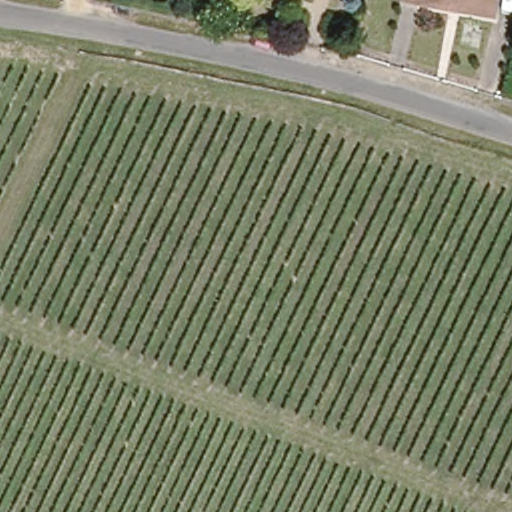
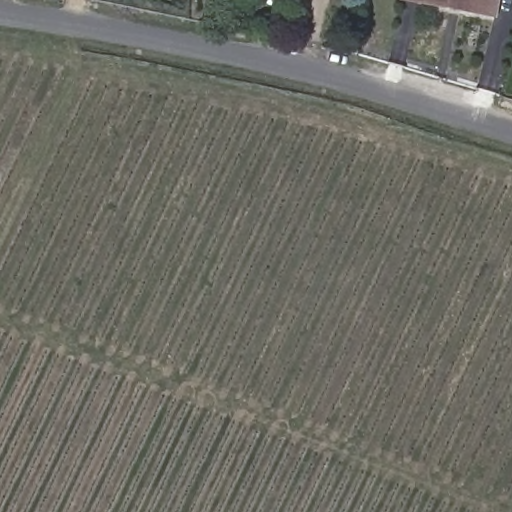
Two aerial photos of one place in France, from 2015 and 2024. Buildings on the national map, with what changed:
unchanged [(425,0),(497,0),(494,13),(482,11),(425,0)]

